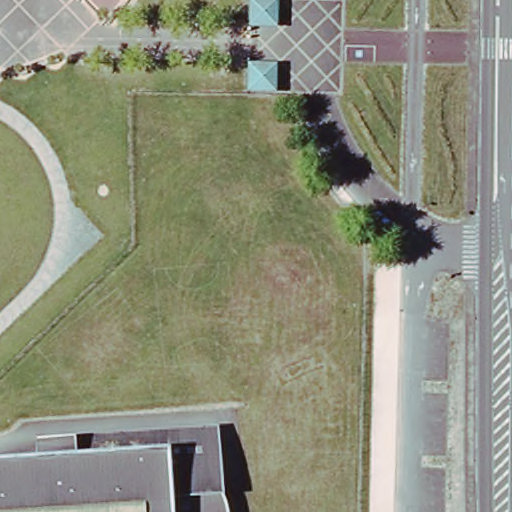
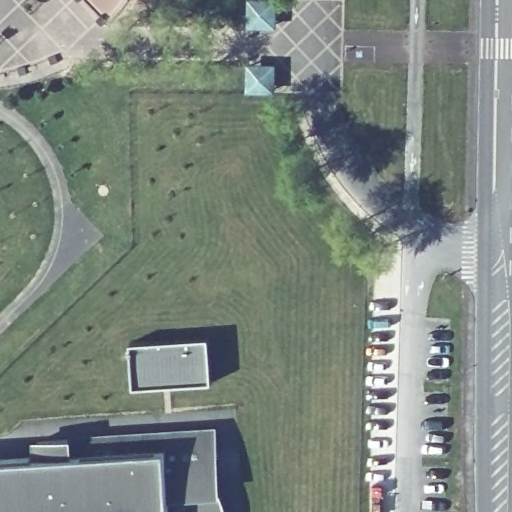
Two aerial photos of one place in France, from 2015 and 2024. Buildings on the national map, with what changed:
unchanged [(254,22),(255,0),(283,0),(281,23),(254,22)]
unchanged [(254,82),(255,60),(279,61),(278,87),(254,82)]
new [(205,342),(208,387),(130,391),(127,346),(205,342)]
unchanged [(42,450),(43,436),(229,427),(232,457),(224,457),(225,492),(234,492),(236,512),(0,512),(0,453),(42,450)]

